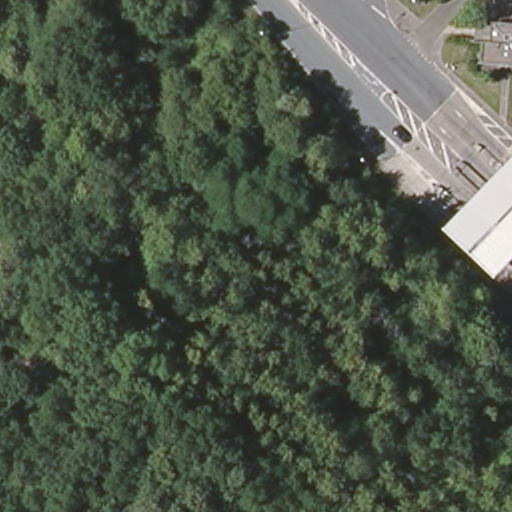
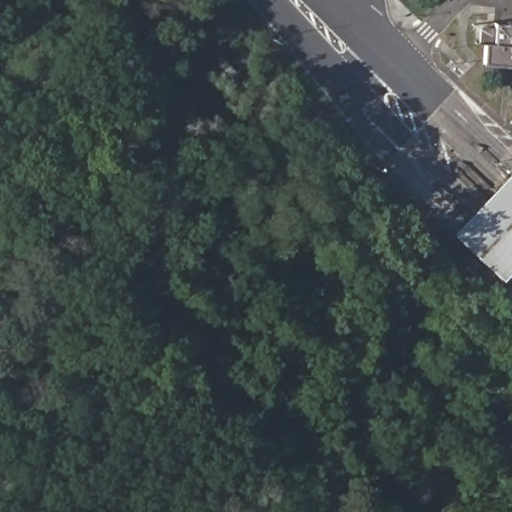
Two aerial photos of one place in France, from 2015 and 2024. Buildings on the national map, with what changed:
unchanged [(483,40),(491,40),(493,19),(512,21),(512,66),(480,62),(483,40)]
unchanged [(459,219),(512,167),(512,272),(510,273),(459,219)]

